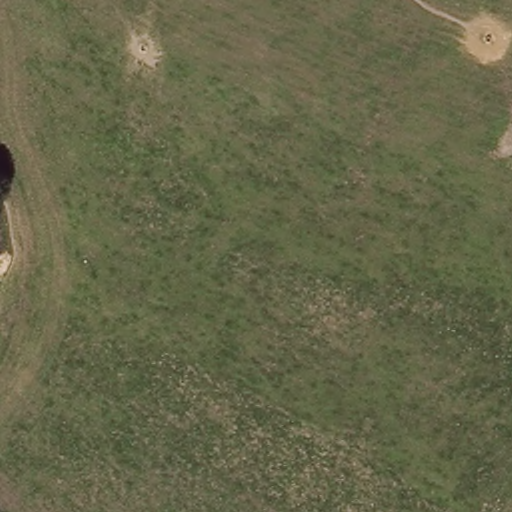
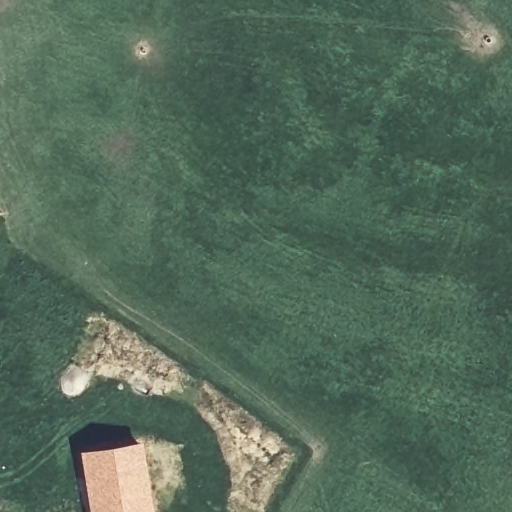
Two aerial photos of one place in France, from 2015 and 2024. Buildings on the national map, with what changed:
new [(141,440),(148,485),(151,512),(88,512),(78,450),(141,440)]

